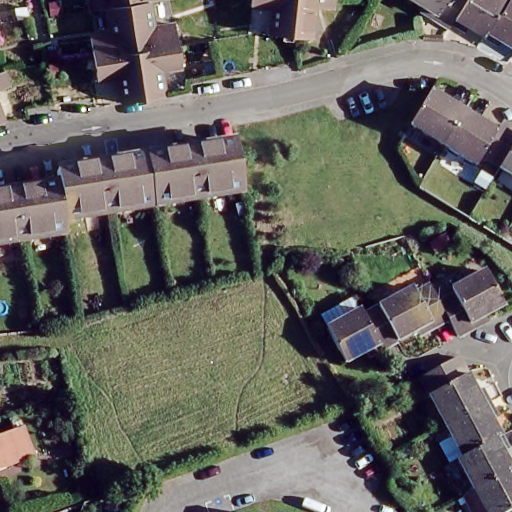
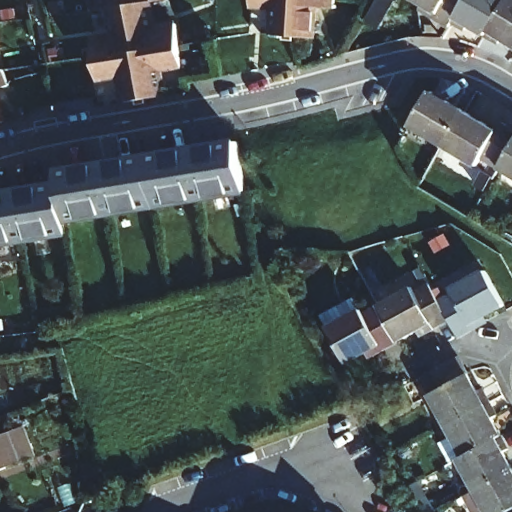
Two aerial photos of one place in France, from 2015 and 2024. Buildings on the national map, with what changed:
unchanged [(170,22),(175,57),(158,60),(163,90),(162,90),(122,97),(117,67),(101,70),(95,35),(112,32),(107,2),(90,6),(89,0),(148,0),(152,26),(170,22)]
unchanged [(311,6),(307,36),(267,31),(271,1),(262,0),(329,0),(328,8),(311,6)]
unchanged [(442,28),(420,14),(422,10),(406,0),(460,0),(446,24),(445,26),(442,28)]
unchanged [(461,26),(458,31),(446,24),(460,0),(499,0),(480,32),(477,36),(461,26)]
unchanged [(492,41),(480,32),(499,0),(512,0),(512,41),(510,45),(495,36),(492,41)]
unchanged [(510,45),(512,41),(512,46),(510,45)]
unchanged [(0,88),(0,78),(4,87),(0,88)]
unchanged [(402,126),(414,109),(428,86),(462,107),(437,147),(402,126)]
unchanged [(462,107),(494,126),(500,117),(512,124),(512,135),(492,167),(476,157),(469,167),(437,147),(462,107)]
unchanged [(492,167),(512,135),(512,178),(492,167)]
unchanged [(53,183),(51,171),(147,155),(232,141),(240,192),(60,221),(62,234),(0,244),(0,192),(26,187),(53,183)]
unchanged [(440,307),(437,303),(434,297),(447,288),(446,285),(479,266),(495,293),(471,308),(474,313),(450,327),(440,307)]
unchanged [(417,322),(415,316),(389,332),(373,302),(410,280),(412,285),(425,278),(434,297),(437,303),(440,307),(417,322)]
unchanged [(375,342),(374,340),(366,344),(364,338),(338,353),(321,322),(357,302),(361,308),(373,302),(389,332),(390,332),(375,342)]
unchanged [(427,393),(462,372),(472,390),(478,386),(487,402),(466,413),(444,425),(427,393)]
unchanged [(466,413),(487,402),(493,413),(487,417),(498,436),(477,447),(456,459),(446,465),(432,440),(448,432),(444,425),(466,413)]
unchanged [(25,423),(36,454),(29,457),(0,467),(0,433),(17,427),(25,423)]
unchanged [(501,475),(473,490),(456,459),(477,447),(498,436),(505,448),(501,452),(511,469),(501,475)]
unchanged [(505,512),(470,512),(462,496),(465,494),(473,490),(501,475),(511,469),(512,472),(512,508),(505,512)]
unchanged [(512,508),(512,512),(505,512),(512,508)]

